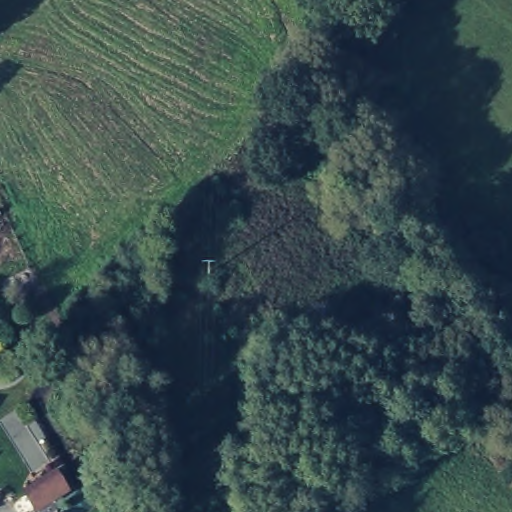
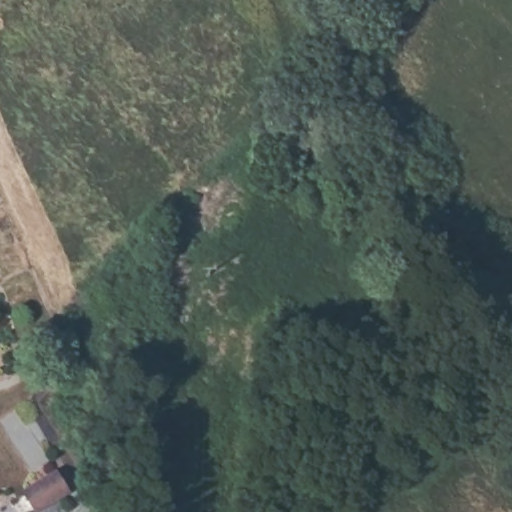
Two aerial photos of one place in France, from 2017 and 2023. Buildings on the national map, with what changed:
unchanged [(33,512),(19,489),(54,468),(71,494),(43,512),(33,512)]

